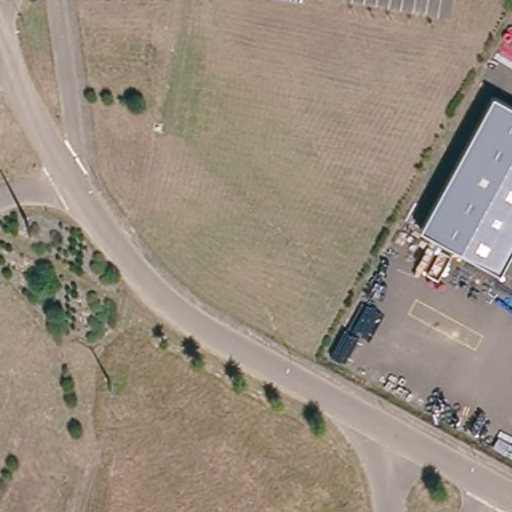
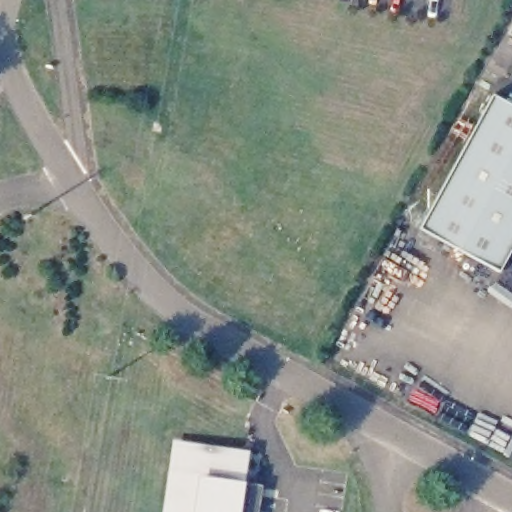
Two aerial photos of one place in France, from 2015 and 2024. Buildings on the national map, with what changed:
unchanged [(493,276),(413,233),(486,99),(512,113),(512,242),(493,276)]
new [(257,512),(163,512),(172,438),(249,449),(245,482),(261,484),(257,512)]

